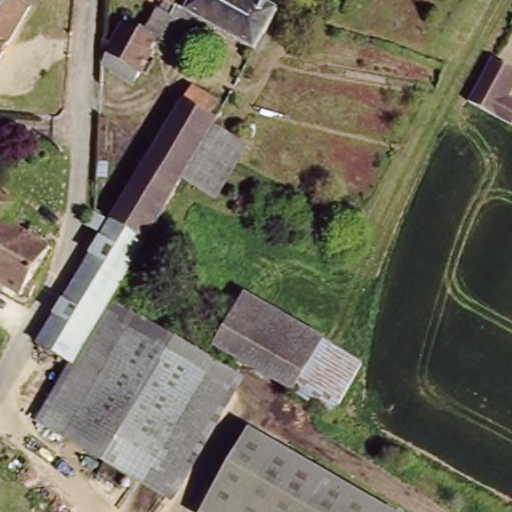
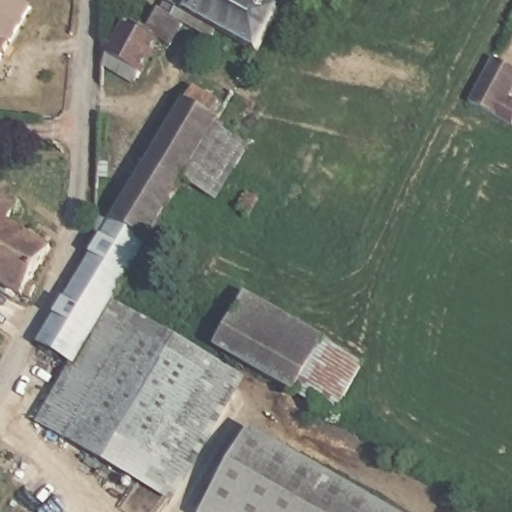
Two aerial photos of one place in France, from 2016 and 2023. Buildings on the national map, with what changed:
unchanged [(0,62),(0,0),(22,0),(33,6),(0,62)]
unchanged [(177,3),(173,9),(172,11),(161,5),(164,0),(179,0),(177,3)]
unchanged [(257,41),(188,3),(182,0),(275,0),(277,1),(257,41)]
unchanged [(101,55),(102,33),(110,37),(120,19),(134,26),(137,28),(140,21),(142,22),(157,30),(153,37),(133,73),(101,55)]
unchanged [(474,95),(478,86),(498,51),(512,59),(512,122),(472,99),(474,95)]
unchanged [(182,186),(146,248),(112,225),(191,93),(217,108),(207,123),(217,129),(213,134),(182,186)]
unchanged [(217,207),(182,186),(213,134),(247,154),(237,176),(217,207)]
unchanged [(35,155),(35,137),(63,138),(62,154),(35,155)]
unchanged [(15,205),(31,215),(23,227),(55,247),(48,261),(45,260),(39,272),(42,274),(35,290),(30,288),(27,294),(0,278),(0,192),(17,202),(15,205)]
unchanged [(35,429),(70,366),(38,348),(112,225),(146,248),(113,296),(108,304),(93,330),(122,346),(66,446),(35,429)]
unchanged [(302,389),(223,347),(250,296),(330,338),(327,344),(303,389),(302,389)]
unchanged [(123,480),(66,446),(122,346),(125,342),(128,344),(131,340),(188,373),(203,382),(228,395),(168,505),(140,490),(123,480)]
unchanged [(327,344),(365,363),(340,409),(303,389),(327,344)]
unchanged [(329,512),(211,512),(205,509),(246,438),(341,490),(329,512)]
unchanged [(329,512),(341,490),(380,512),(329,512)]

